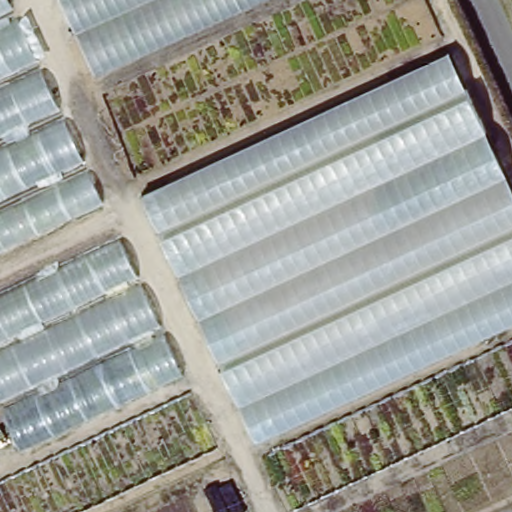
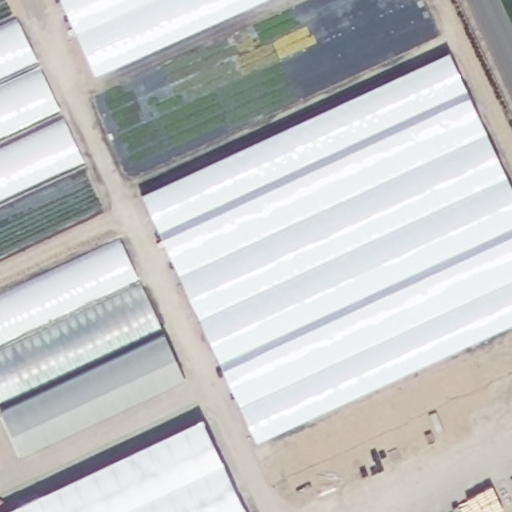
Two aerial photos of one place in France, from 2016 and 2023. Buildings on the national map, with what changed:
unchanged [(102,206),(0,252),(0,0),(13,0),(102,206)]
unchanged [(55,0),(271,0),(92,81),(55,0)]
unchanged [(512,189),(512,326),(257,443),(142,196),(449,53),(512,189)]
unchanged [(24,453),(0,402),(0,299),(120,242),(185,377),(24,453)]
new [(0,512),(0,511),(200,417),(243,512),(0,512)]

